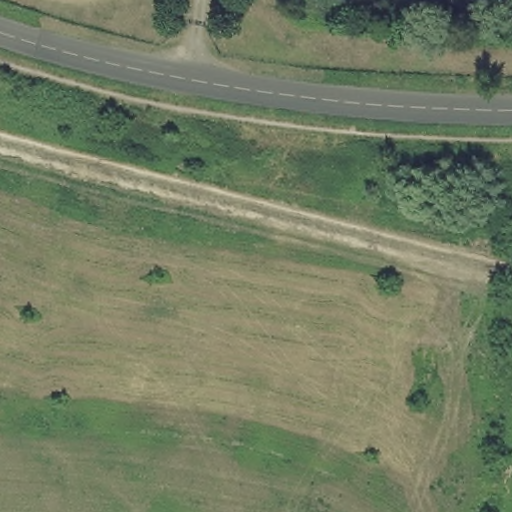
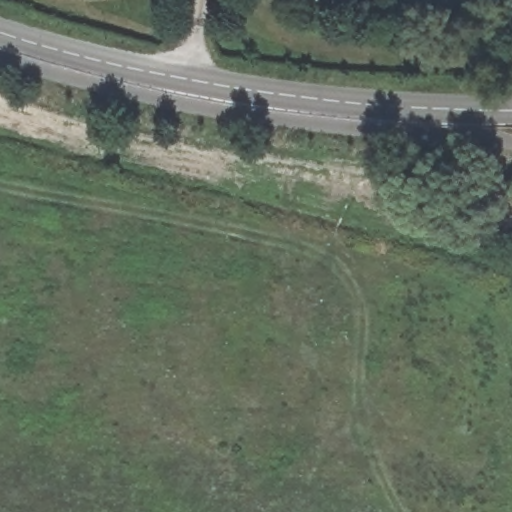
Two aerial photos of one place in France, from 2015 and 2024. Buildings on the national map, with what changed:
[]

